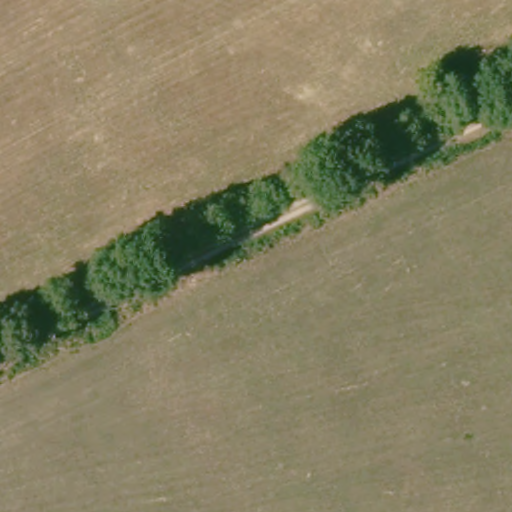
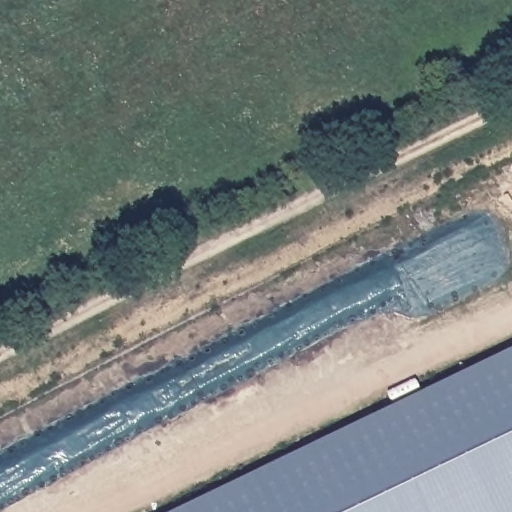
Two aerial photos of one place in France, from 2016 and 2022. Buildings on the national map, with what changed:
new [(512,512),(171,512),(512,349),(512,512)]

